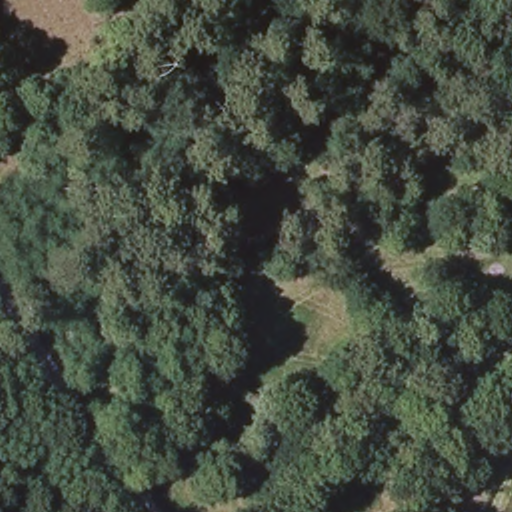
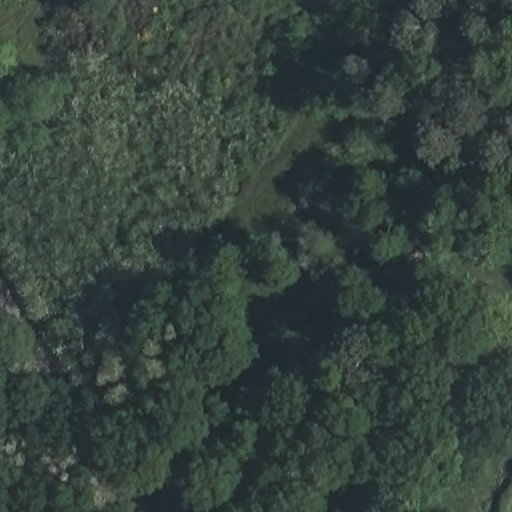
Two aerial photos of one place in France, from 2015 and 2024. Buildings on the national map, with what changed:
[]

